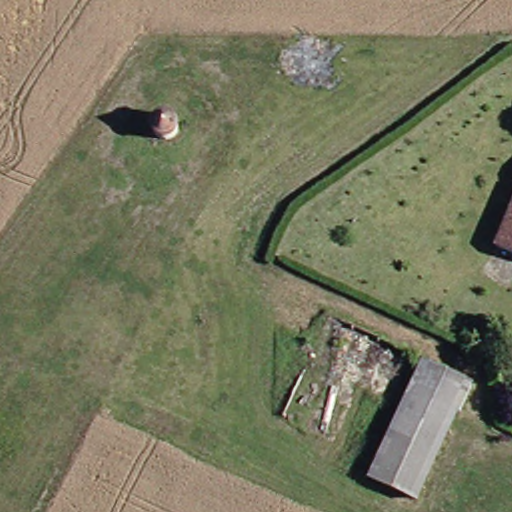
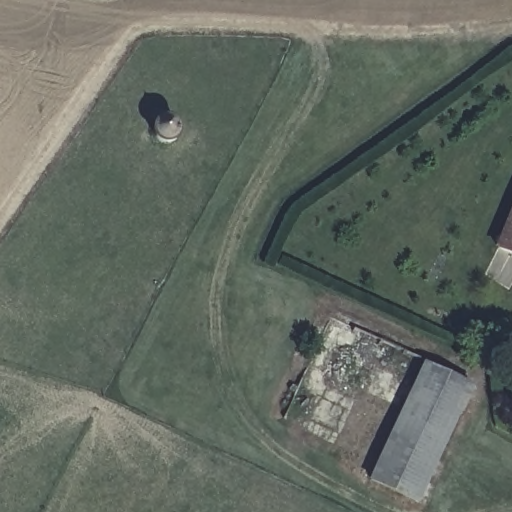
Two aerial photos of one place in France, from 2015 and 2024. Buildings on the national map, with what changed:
unchanged [(160,118),(164,114),(168,112),(173,113),(178,115),(181,120),(182,125),(180,130),(176,134),(171,136),(166,135),(161,132),(159,129),(158,123),(160,118)]
unchanged [(505,245),(512,230),(512,248),(505,245)]
unchanged [(386,467),(433,367),(478,388),(424,504),(388,487),(378,483),(386,467)]

